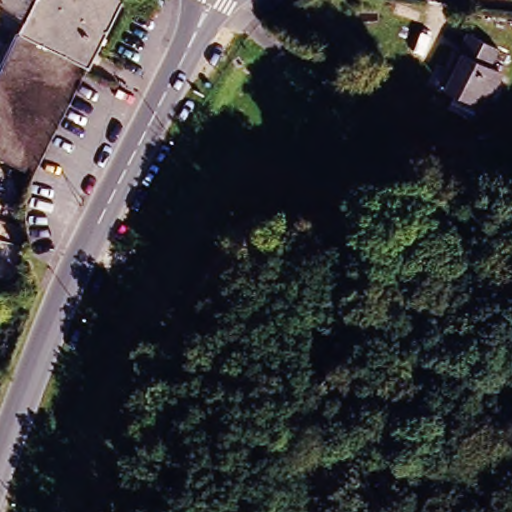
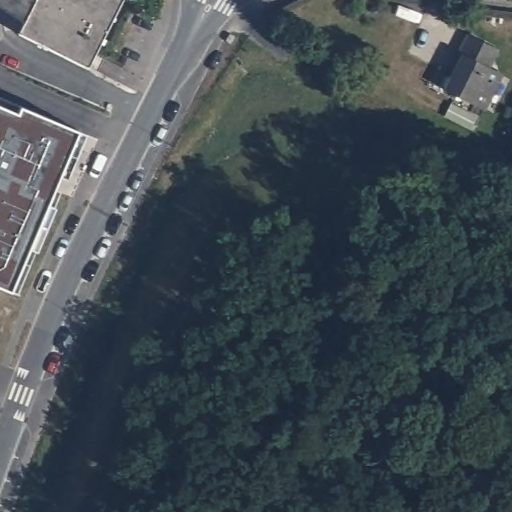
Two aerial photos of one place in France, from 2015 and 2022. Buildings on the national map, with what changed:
unchanged [(22,21),(0,8),(0,0),(33,0),(22,21)]
unchanged [(86,67),(83,66),(17,32),(22,21),(33,0),(119,0),(86,67)]
unchanged [(454,72),(450,70),(468,35),(500,51),(490,69),(502,75),(483,110),(445,90),(454,72)]
new [(20,104),(78,130),(12,290),(0,286),(0,104),(17,111),(20,104)]

